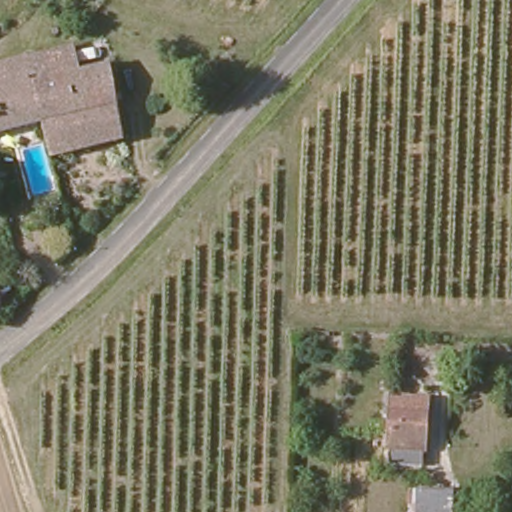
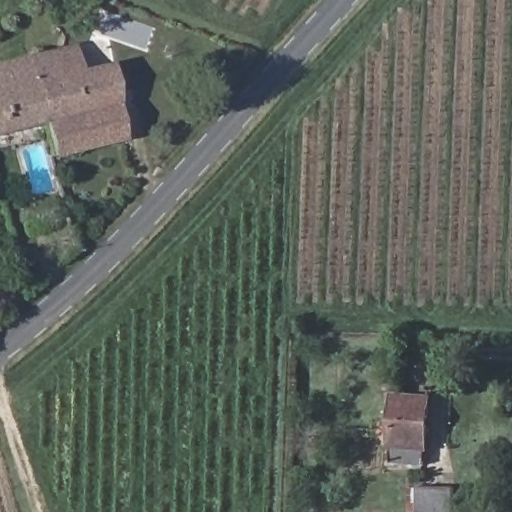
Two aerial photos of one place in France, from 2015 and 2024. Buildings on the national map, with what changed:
unchanged [(44,52),(70,47),(77,45),(85,71),(116,67),(121,103),(46,122),(29,56),(44,52)]
unchanged [(29,56),(46,122),(0,134),(0,63),(29,56)]
unchanged [(46,122),(121,103),(128,140),(55,157),(46,122)]
unchanged [(384,457),(388,392),(416,394),(425,395),(421,461),(411,460),(384,457)]
unchanged [(458,512),(411,512),(411,487),(460,489),(458,512)]

